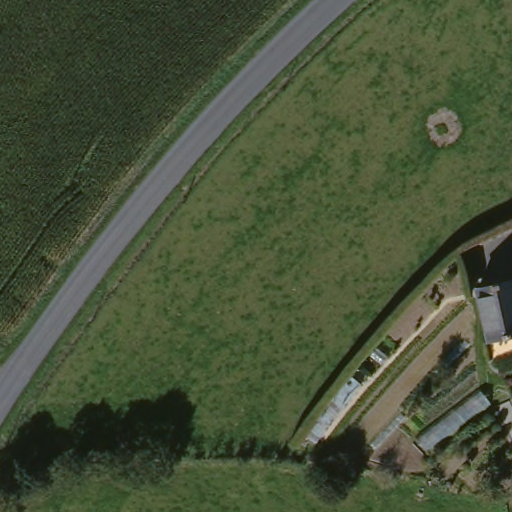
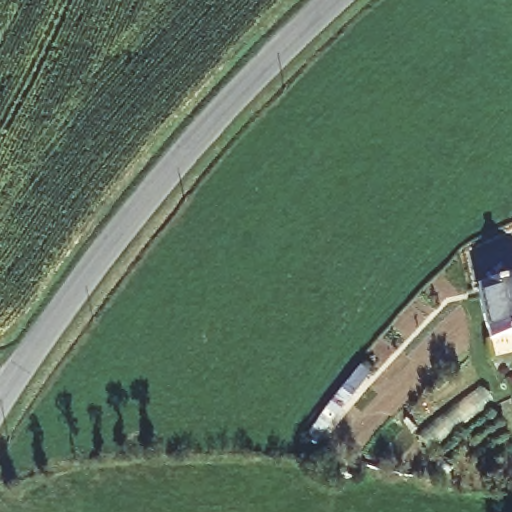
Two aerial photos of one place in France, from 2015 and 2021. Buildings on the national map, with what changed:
unchanged [(478,290),(512,283),(512,338),(489,343),(478,290)]

